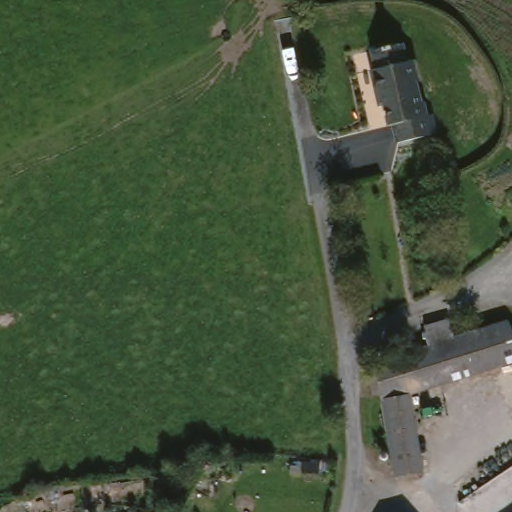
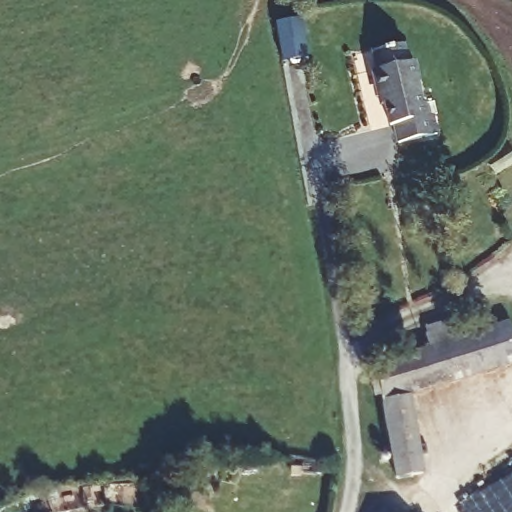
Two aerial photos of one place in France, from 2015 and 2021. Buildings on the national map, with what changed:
unchanged [(427,100),(429,99),(433,112),(437,110),(441,130),(403,139),(399,121),(395,121),(388,90),(383,91),(377,66),(382,65),(378,46),(408,40),(413,59),(419,56),(424,77),(422,77),(427,100)]
unchanged [(512,364),(494,370),(415,394),(388,398),(387,395),(380,395),(376,372),(383,371),(382,364),(435,347),(430,328),(452,321),(457,339),(512,323),(512,364)]
unchanged [(428,473),(401,477),(388,398),(415,394),(428,473)]

